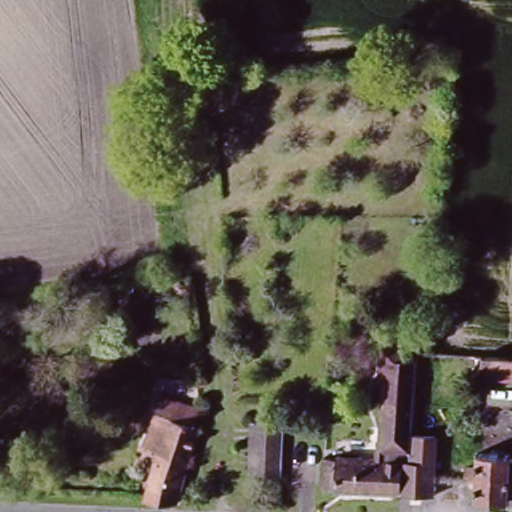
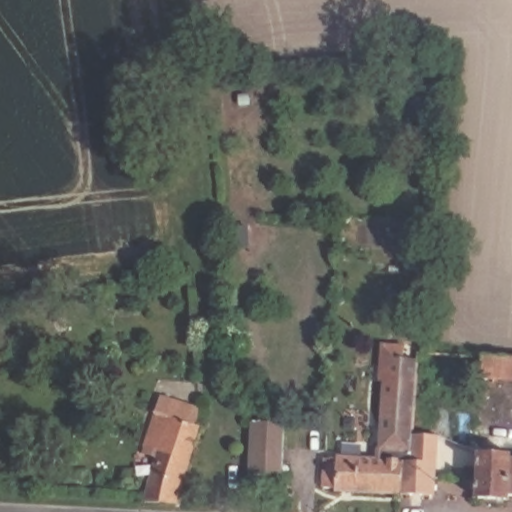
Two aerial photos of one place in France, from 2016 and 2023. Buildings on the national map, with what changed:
unchanged [(422,493),(327,489),(327,451),(380,454),(385,346),(429,348),(423,435),(447,436),(445,457),(443,495),(422,493)]
unchanged [(487,350),(512,351),(512,383),(484,382),(487,350)]
unchanged [(155,489),(167,456),(147,448),(170,384),(207,397),(205,418),(184,492),(155,489)]
unchanged [(257,450),(258,424),(284,425),(285,452),(285,474),(257,473),(257,450)]
unchanged [(512,450),(512,498),(477,495),(478,447),(512,450)]

